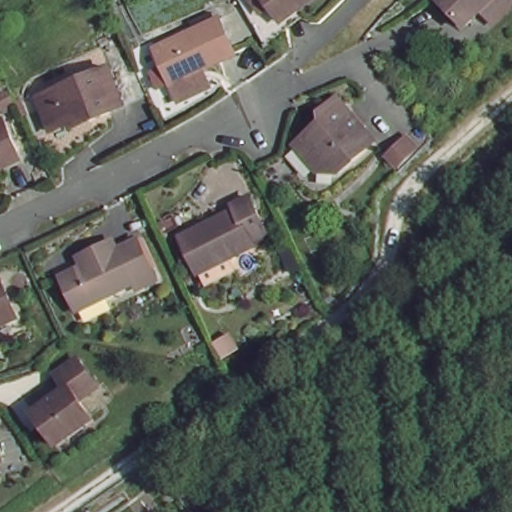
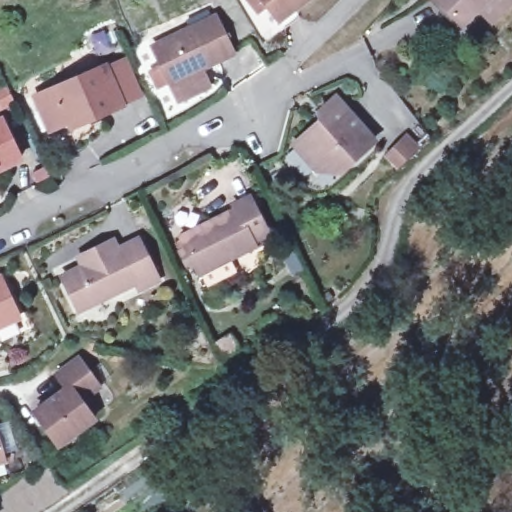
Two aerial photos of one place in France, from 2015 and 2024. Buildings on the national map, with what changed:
unchanged [(266,0),(310,0),(282,21),(266,0)]
unchanged [(476,3),(455,24),(433,0),(506,0),(489,16),(476,3)]
unchanged [(236,54),(175,82),(153,43),(215,14),(236,54)]
unchanged [(125,102),(76,124),(73,118),(51,127),(35,91),(105,60),(125,102)]
unchanged [(1,110),(0,108),(0,90),(5,87),(13,104),(1,110)]
unchanged [(5,164),(2,159),(0,160),(0,113),(20,156),(5,164)]
unchanged [(371,146),(324,184),(293,144),(315,128),(325,139),(350,119),(371,146)]
unchanged [(428,139),(406,164),(391,150),(413,126),(428,139)]
unchanged [(269,247),(197,278),(180,239),(233,216),(231,210),(250,202),(269,247)]
unchanged [(150,285),(135,293),(131,284),(73,309),(58,278),(85,265),(80,257),(109,244),(112,251),(130,243),(150,285)]
unchanged [(0,325),(0,276),(18,318),(0,325)]
unchanged [(98,384),(79,398),(96,422),(59,449),(32,412),(63,389),(53,377),(78,359),(98,384)]
unchanged [(0,462),(0,448),(5,461),(0,462)]

